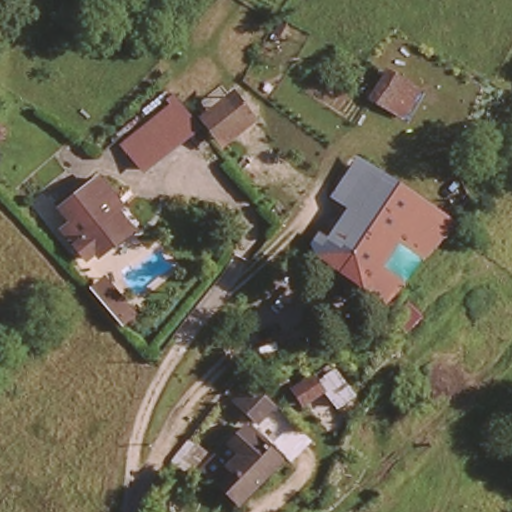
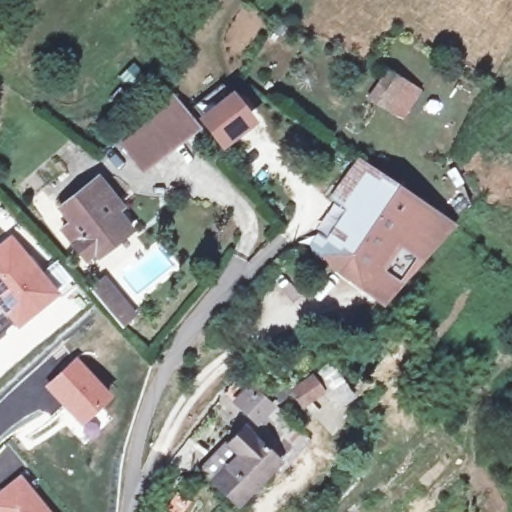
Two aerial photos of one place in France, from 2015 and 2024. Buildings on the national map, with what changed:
unchanged [(425,87),(411,114),(380,96),(395,70),(425,87)]
unchanged [(207,114),(235,92),(252,116),(225,137),(207,114)]
unchanged [(129,142),(176,104),(195,130),(146,165),(129,142)]
unchanged [(310,241),(316,234),(327,241),(355,203),(338,193),(356,163),(358,160),(378,172),(376,175),(383,181),(393,187),(346,252),(335,267),(320,256),(310,241)]
unchanged [(66,205),(103,176),(116,192),(111,196),(137,229),(119,243),(115,238),(92,256),(68,226),(77,219),(66,205)]
unchanged [(346,252),(393,187),(452,226),(383,300),(335,267),(346,252)]
new [(10,233),(60,293),(17,327),(0,308),(0,242),(10,233)]
new [(135,317),(123,327),(91,288),(103,278),(135,317)]
new [(75,354),(110,392),(78,423),(42,385),(75,354)]
unchanged [(311,366),(325,357),(346,389),(331,398),(311,366)]
unchanged [(307,371),(315,382),(298,393),(291,381),(307,371)]
unchanged [(255,392),(268,406),(252,422),(235,404),(237,402),(251,388),(255,392)]
unchanged [(239,426),(272,461),(230,503),(205,479),(194,468),(222,442),(239,426)]
new [(20,473),(51,512),(0,512),(0,490),(20,473)]

